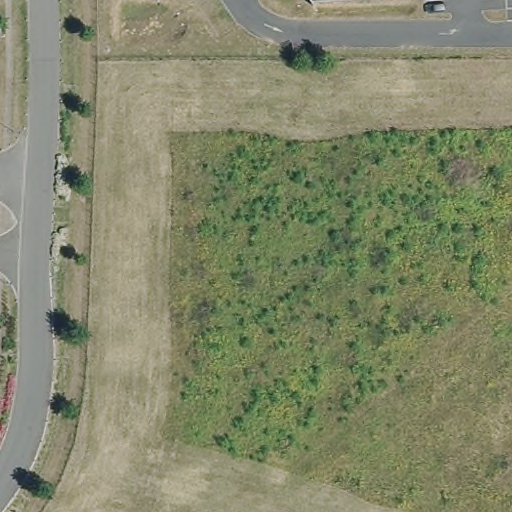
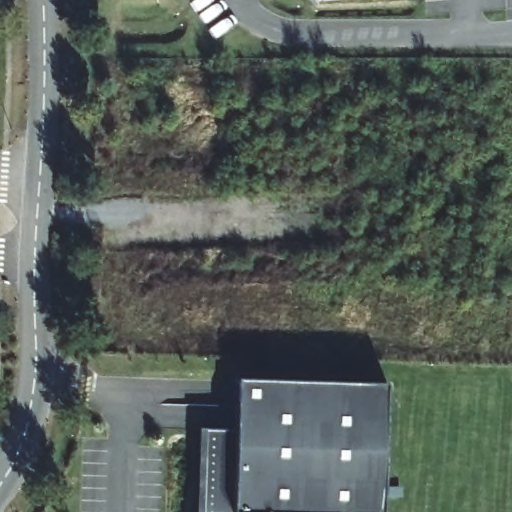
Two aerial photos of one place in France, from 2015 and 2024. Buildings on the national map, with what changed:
new [(237,383),(387,385),(383,512),(199,512),(201,431),(236,433),(237,383)]

